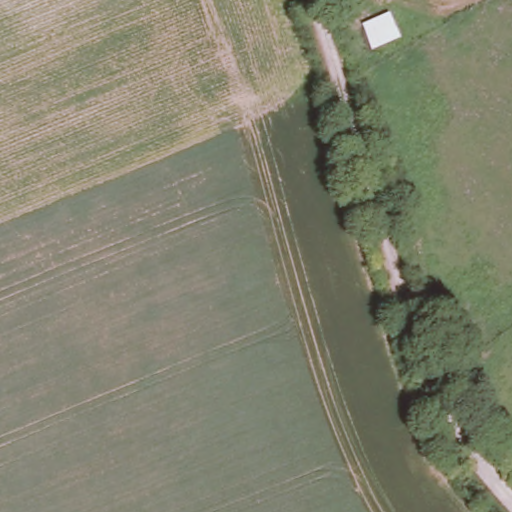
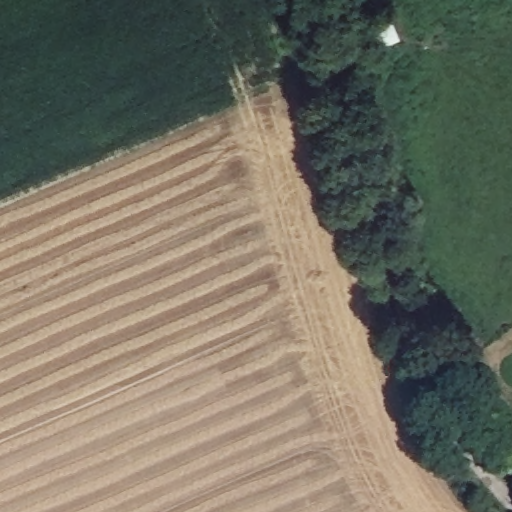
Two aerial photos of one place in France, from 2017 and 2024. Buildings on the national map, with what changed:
[]

